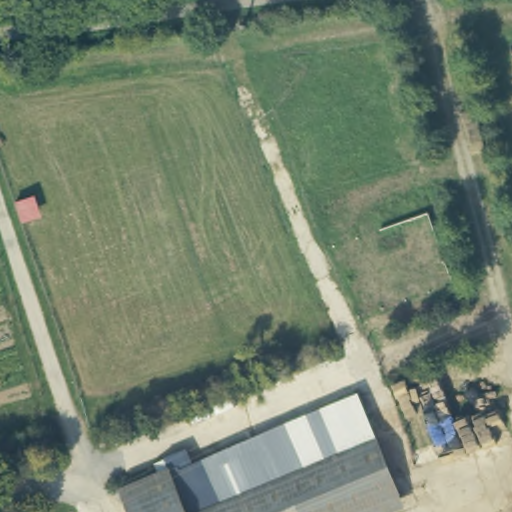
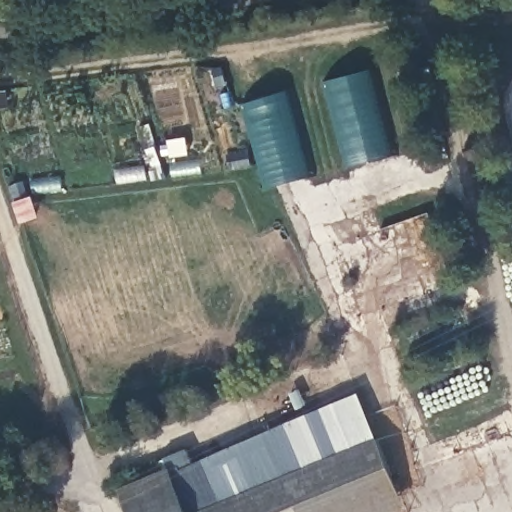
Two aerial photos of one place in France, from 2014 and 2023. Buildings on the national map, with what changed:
new [(368,70),(391,158),(352,167),(330,81),(368,70)]
new [(287,93),(309,178),(266,188),(245,103),(287,93)]
unchanged [(155,473),(152,465),(185,451),(191,465),(358,395),(405,508),(396,512),(127,512),(117,490),(155,473)]

